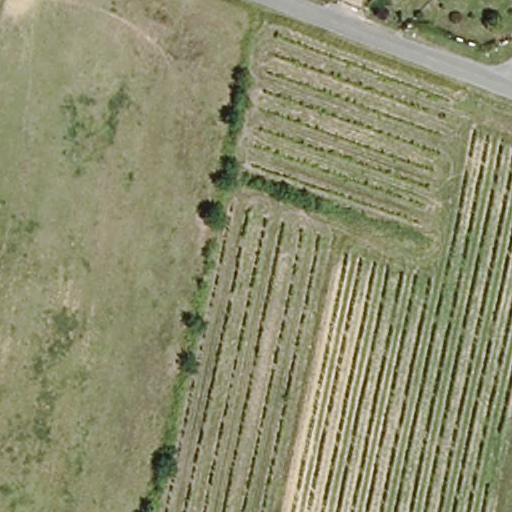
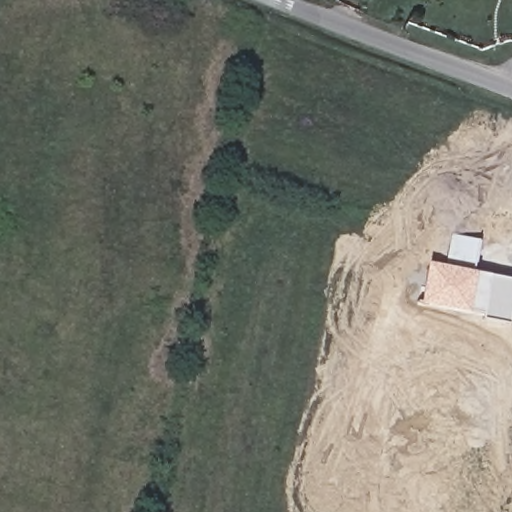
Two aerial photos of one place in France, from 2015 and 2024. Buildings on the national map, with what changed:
new [(481,319),(483,313),(468,310),(467,313),(419,305),(427,262),(440,265),(444,265),(451,234),(480,240),(473,271),(476,272),(512,279),(512,308),(509,324),(481,319)]

